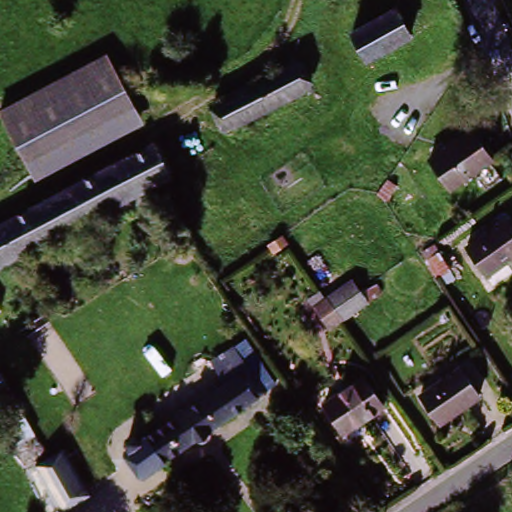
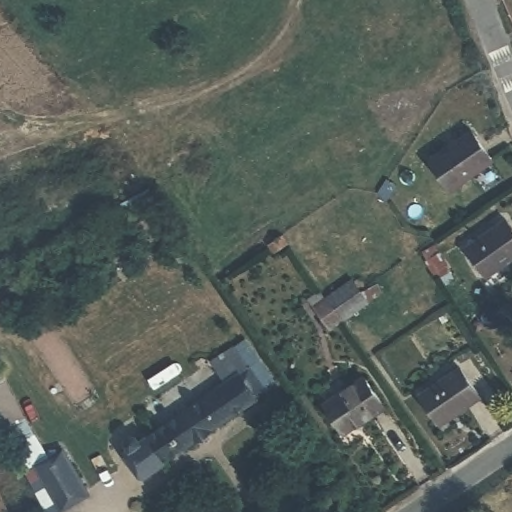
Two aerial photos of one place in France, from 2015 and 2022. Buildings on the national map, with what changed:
demolished [(361,56),(351,36),(389,14),(399,33),(361,56)]
demolished [(140,124),(37,185),(2,123),(106,62),(140,124)]
demolished [(280,69),(291,90),(225,129),(213,109),(280,69)]
demolished [(0,263),(0,221),(151,131),(169,164),(156,172),(0,263)]
unchanged [(467,136),(485,164),(445,192),(427,164),(467,136)]
unchanged [(503,220),(512,236),(512,256),(482,274),(464,246),(503,220)]
new [(436,248),(456,281),(451,284),(438,272),(431,275),(422,254),(436,248)]
unchanged [(315,308),(324,301),(351,283),(365,305),(338,323),(329,330),(315,308)]
unchanged [(159,458),(145,436),(273,353),(287,376),(159,458)]
new [(91,495),(62,512),(61,512),(35,466),(28,470),(0,419),(0,357),(7,369),(2,372),(51,455),(64,447),(91,495)]
unchanged [(415,392),(459,369),(474,402),(431,425),(415,392)]
unchanged [(325,399),(365,380),(380,412),(341,432),(325,399)]

